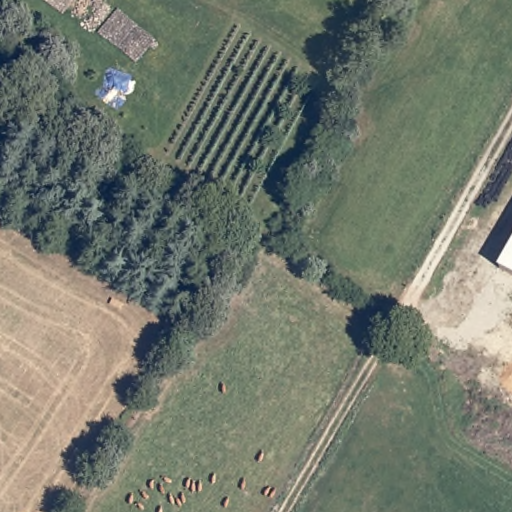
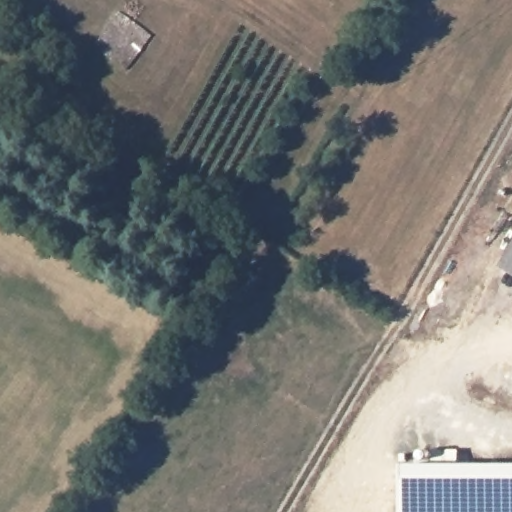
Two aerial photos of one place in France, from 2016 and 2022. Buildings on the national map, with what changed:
unchanged [(512,243),(512,275),(498,267),(512,243)]
new [(396,463),(512,464),(512,512),(396,512),(396,463)]

